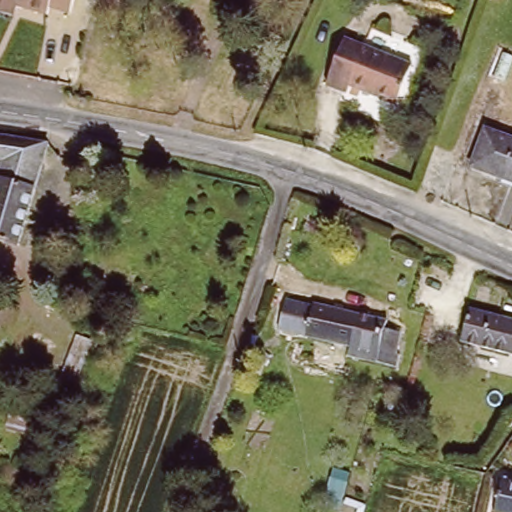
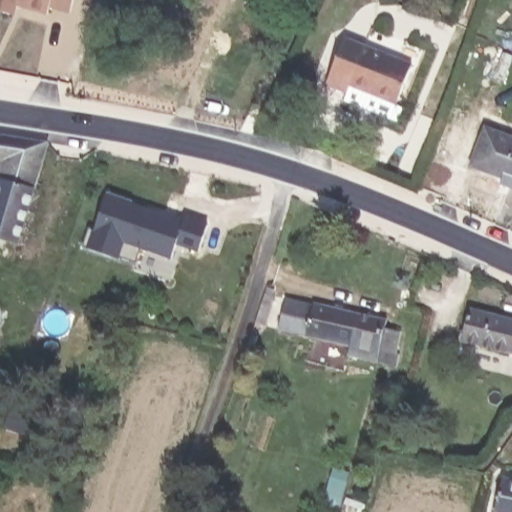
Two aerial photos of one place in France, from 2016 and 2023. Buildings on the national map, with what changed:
unchanged [(45,4),(43,12),(13,5),(11,10),(0,8),(0,0),(79,0),(77,10),(45,4)]
unchanged [(398,105),(355,89),(352,96),(328,87),(349,37),(415,65),(398,105)]
unchanged [(35,67),(31,80),(17,76),(20,64),(35,67)]
unchanged [(512,144),(512,184),(472,169),(485,134),(512,144)]
unchanged [(0,239),(0,169),(2,161),(0,160),(0,136),(47,144),(17,244),(0,239)]
new [(92,232),(105,194),(131,202),(130,206),(155,214),(182,222),(183,218),(207,226),(198,251),(175,244),(170,258),(140,249),(135,264),(117,258),(115,261),(80,249),(87,230),(92,232)]
unchanged [(382,330),(395,332),(389,355),(395,356),(392,367),(344,356),(345,346),(307,337),(278,330),(286,300),(312,306),(331,311),(383,322),(382,330)]
unchanged [(460,342),(465,324),(455,321),(458,308),(512,322),(512,356),(460,342)]
demolished [(74,332),(103,346),(92,370),(82,362),(73,382),(60,375),(74,332)]
unchanged [(500,512),(505,484),(512,485),(512,512),(500,512)]

